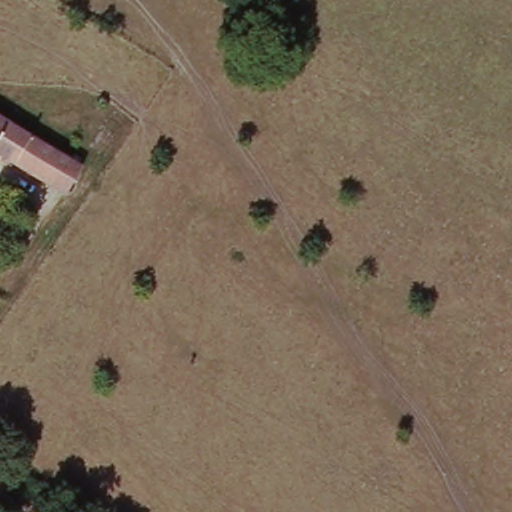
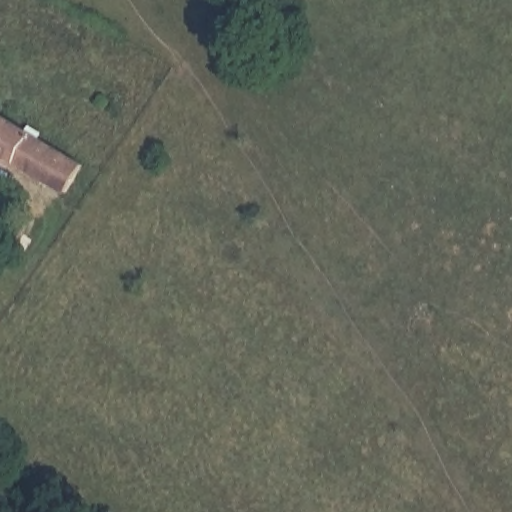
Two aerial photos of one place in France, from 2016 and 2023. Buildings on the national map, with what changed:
unchanged [(94,161),(77,187),(0,142),(0,106),(78,152),(94,161)]

